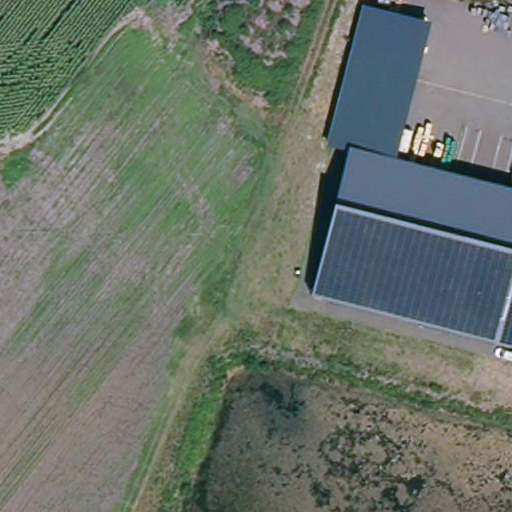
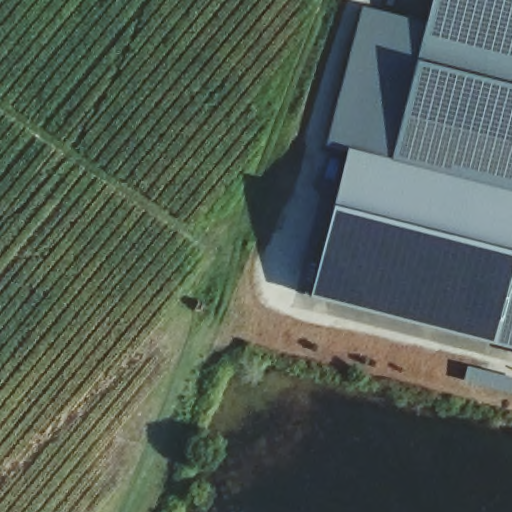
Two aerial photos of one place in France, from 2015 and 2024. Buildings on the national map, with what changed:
new [(397,163),(432,24),(427,23),(433,0),(512,0),(512,192),(397,163)]
unchanged [(347,150),(327,144),(362,5),(432,24),(397,163),(347,150)]
unchanged [(311,296),(347,150),(512,192),(512,346),(311,296)]

